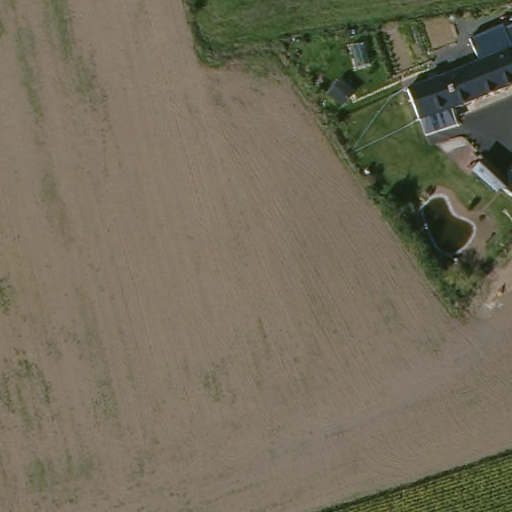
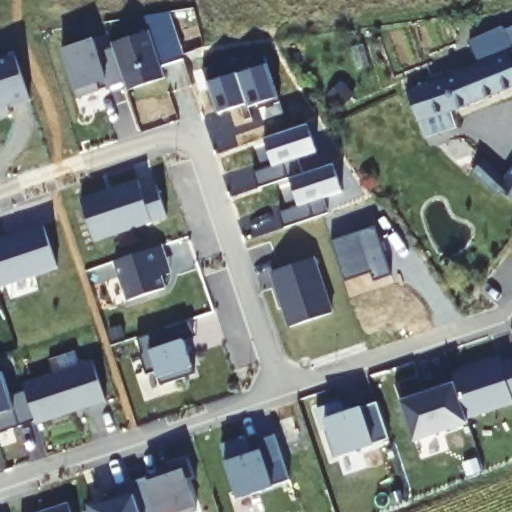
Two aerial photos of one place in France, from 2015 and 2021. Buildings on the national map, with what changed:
unchanged [(412,88),(483,60),(474,37),(506,25),(508,29),(512,28),(512,49),(510,50),(512,56),(512,84),(423,116),(412,88)]
new [(91,39),(96,53),(111,49),(109,43),(146,30),(162,81),(125,90),(122,81),(75,96),(59,49),(91,39)]
new [(232,62),(235,71),(265,64),(276,110),(255,114),(254,110),(244,111),(243,107),(212,115),(202,69),(232,62)]
new [(307,125),(317,152),(298,158),(303,173),(334,164),(342,190),(322,198),(328,213),(283,228),(279,212),(300,204),(290,176),(260,188),(255,172),(275,165),(266,138),(307,125)]
unchanged [(510,187),(503,192),(483,170),(495,159),(511,175),(512,173),(512,188),(510,187)]
new [(137,184),(140,193),(155,188),(165,221),(92,240),(79,198),(137,184)]
new [(165,261),(168,272),(159,275),(163,287),(126,300),(112,260),(159,244),(165,261)]
new [(311,259),(330,314),(290,328),(271,272),(311,259)]
new [(192,320),(197,335),(184,339),(195,374),(161,385),(156,371),(146,375),(139,354),(142,353),(137,338),(167,328),(192,320)]
new [(499,362),(501,366),(512,362),(512,399),(512,403),(466,418),(453,381),(452,378),(499,362)]
new [(91,363),(105,404),(36,427),(22,381),(91,363)]
new [(9,396),(25,391),(36,422),(0,434),(0,373),(1,373),(9,396)]
new [(422,391),(434,387),(453,381),(466,418),(467,423),(415,441),(396,385),(417,377),(422,391)]
new [(339,402),(343,413),(376,402),(388,440),(336,457),(327,428),(322,430),(315,410),(339,402)]
new [(159,473),(156,463),(182,454),(189,476),(185,478),(196,511),(193,512),(138,512),(129,483),(145,477),(159,473)]
new [(111,489),(129,483),(138,512),(90,512),(89,509),(87,504),(102,499),(104,504),(115,500),(111,489)]
new [(67,502),(70,512),(37,512),(67,502)]

